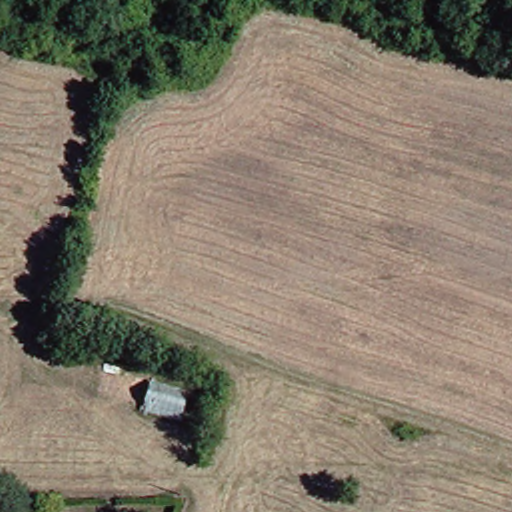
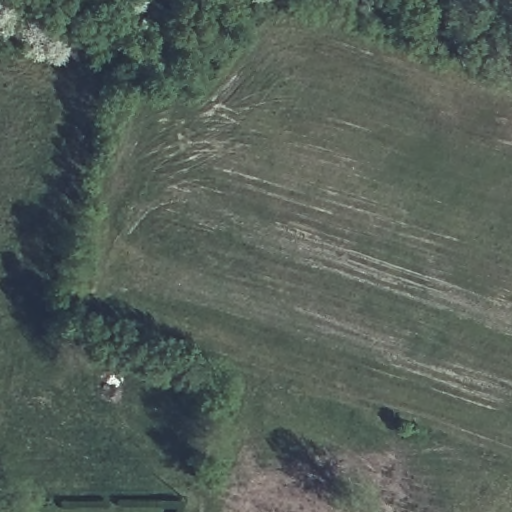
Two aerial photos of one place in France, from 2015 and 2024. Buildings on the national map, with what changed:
[]

